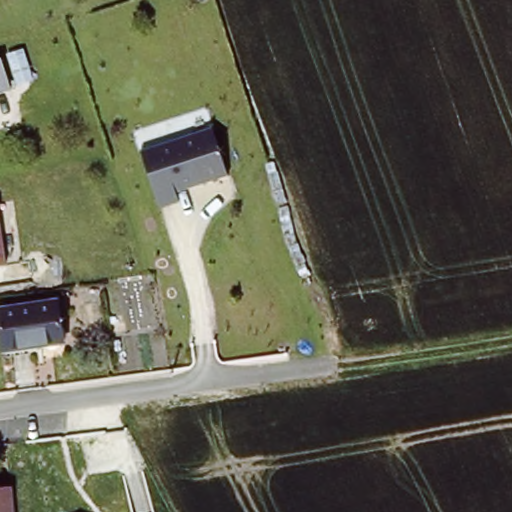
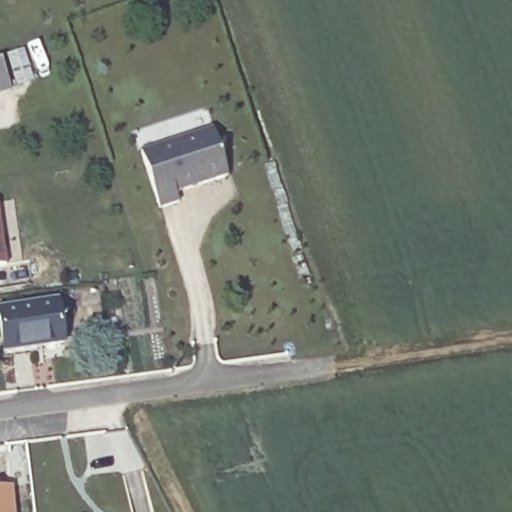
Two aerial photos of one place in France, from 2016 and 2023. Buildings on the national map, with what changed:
unchanged [(13,90),(0,94),(0,63),(4,62),(13,90)]
unchanged [(227,175),(177,190),(181,201),(168,205),(161,207),(142,150),(211,128),(225,169),(227,175)]
unchanged [(0,257),(0,219),(5,257),(0,257)]
unchanged [(59,301),(64,342),(5,350),(1,307),(59,301)]
unchanged [(11,512),(0,512),(0,491),(9,490),(11,512)]

